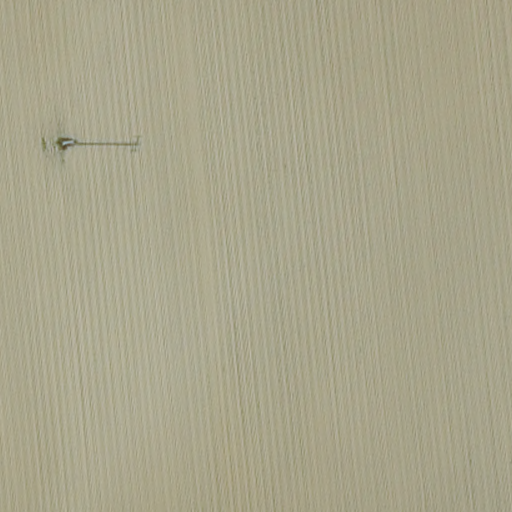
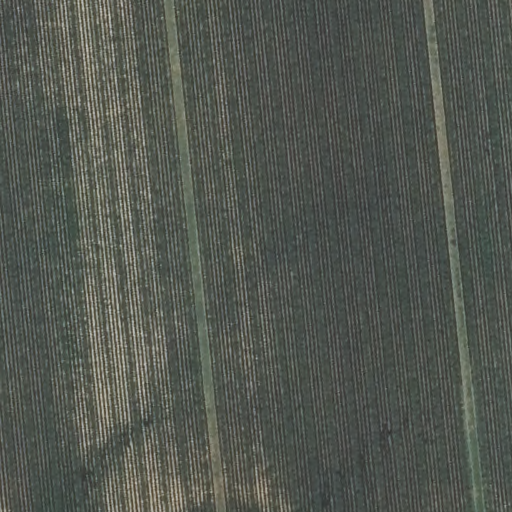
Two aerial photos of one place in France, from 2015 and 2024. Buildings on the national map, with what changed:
[]

